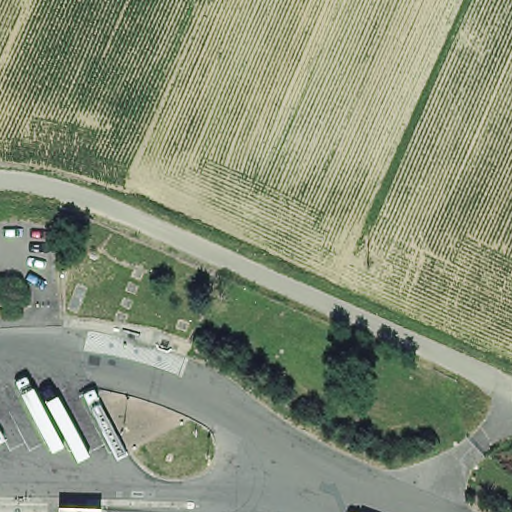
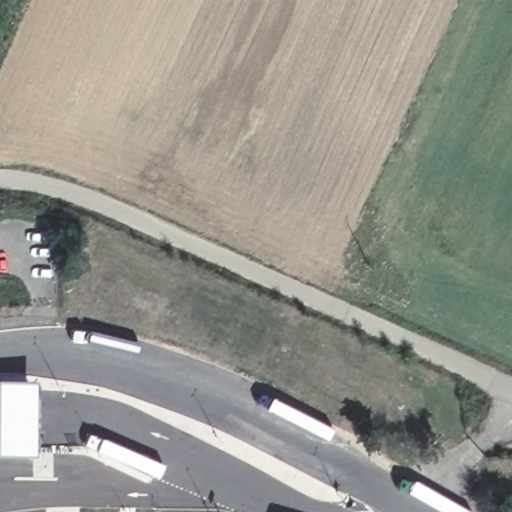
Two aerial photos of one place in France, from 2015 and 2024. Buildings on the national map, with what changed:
new [(40,378),(40,425),(73,425),(75,443),(39,442),(39,455),(0,455),(0,377),(40,378)]
demolished [(102,503),(102,512),(58,512),(58,500),(102,503)]

